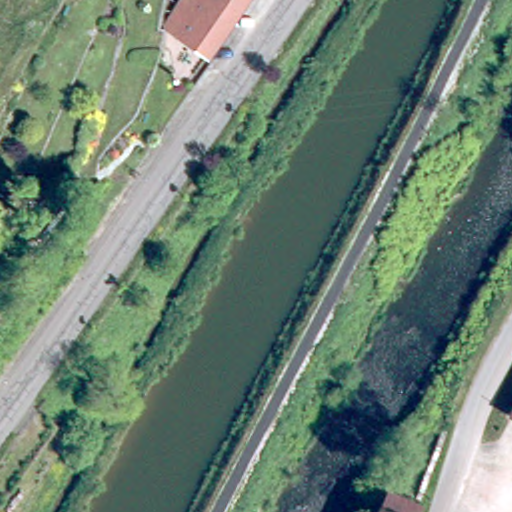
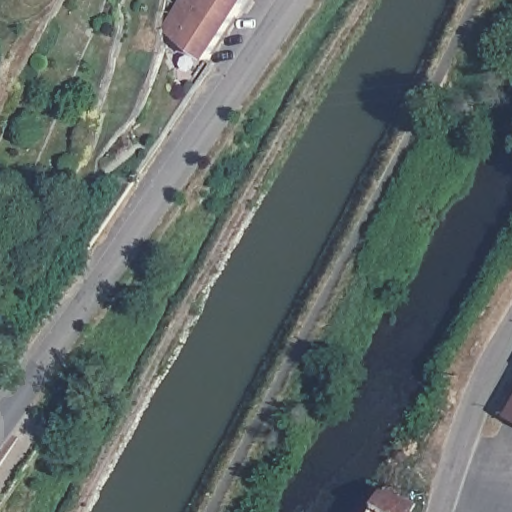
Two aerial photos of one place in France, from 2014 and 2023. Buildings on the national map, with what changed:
unchanged [(210,67),(167,37),(178,20),(176,19),(188,2),(186,0),(253,0),(256,2),(210,67)]
unchanged [(381,493),(389,479),(421,495),(413,510),(417,512),(372,512),(381,493)]

